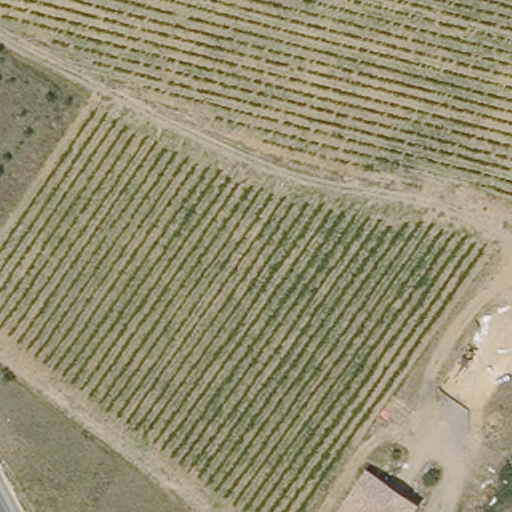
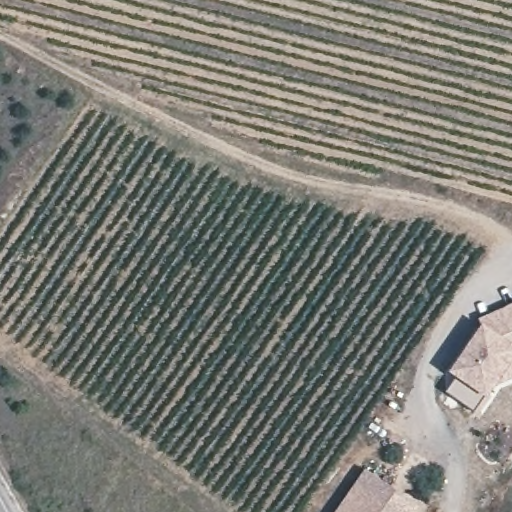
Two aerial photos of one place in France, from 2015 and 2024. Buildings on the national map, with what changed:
new [(491,393),(491,396),(480,413),(446,391),(455,376),(452,374),(482,325),(478,319),(512,304),(512,376),(500,381),(491,393)]
unchanged [(338,512),(364,472),(419,509),(417,512),(338,512)]

